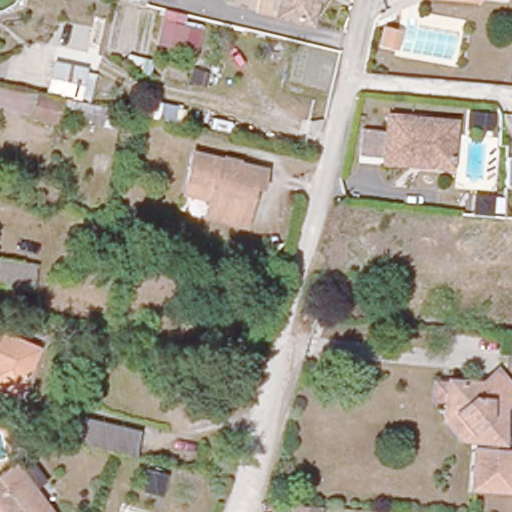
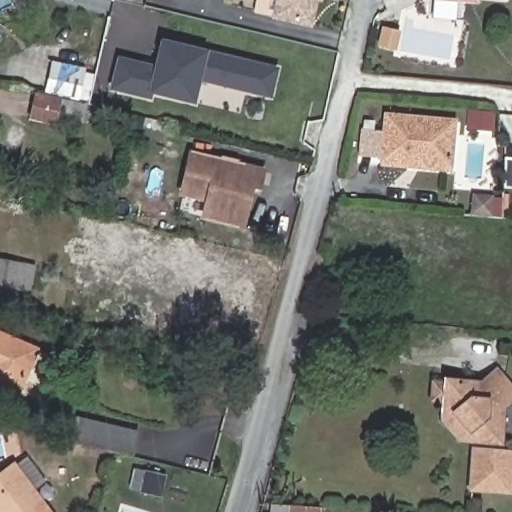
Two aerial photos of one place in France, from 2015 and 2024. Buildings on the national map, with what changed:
unchanged [(316,5),(310,28),(275,20),(281,0),(321,0),(320,6),(316,5)]
unchanged [(415,0),(469,0),(469,6),(414,2),(415,0)]
unchanged [(512,1),(502,0),(512,0),(512,1)]
new [(271,99),(201,82),(194,105),(153,94),(151,100),(110,90),(118,58),(155,68),(162,41),(208,52),(279,69),(271,99)]
unchanged [(32,97),(63,105),(57,129),(27,121),(32,97)]
unchanged [(359,127),(383,129),(384,112),(452,118),(449,161),(381,156),(357,154),(359,127)]
unchanged [(490,116),(489,131),(471,130),(472,114),(490,116)]
unchanged [(260,170),(256,189),(246,187),(236,224),(198,215),(203,197),(179,192),(189,152),(260,170)]
unchanged [(507,158),(512,158),(512,187),(504,187),(507,158)]
demolished [(507,195),(512,195),(512,212),(505,211),(507,195)]
unchanged [(0,289),(0,264),(31,271),(26,295),(0,289)]
unchanged [(34,352),(15,395),(0,388),(0,336),(34,352)]
unchanged [(512,389),(512,395),(502,404),(500,451),(511,452),(509,487),(471,484),(474,448),(484,449),(485,441),(474,440),(461,438),(458,438),(442,417),(443,402),(428,401),(430,377),(445,378),(474,381),(492,367),(512,389)]
unchanged [(109,449),(65,439),(71,415),(131,428),(125,453),(119,451),(110,449),(109,449)]
unchanged [(23,461),(42,486),(29,496),(41,512),(0,512),(0,473),(8,468),(10,470),(23,461)]
unchanged [(322,512),(295,512),(296,497),(323,499),(322,512)]

